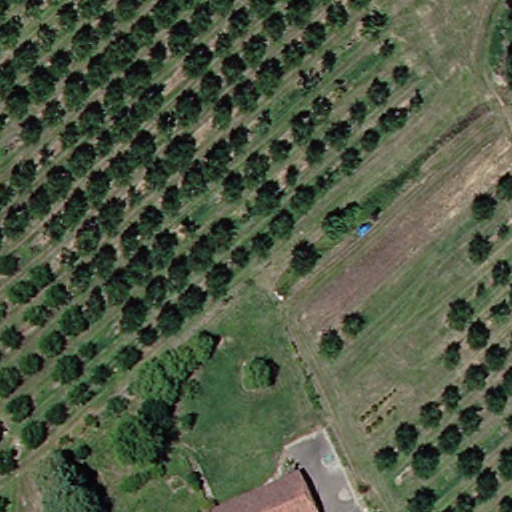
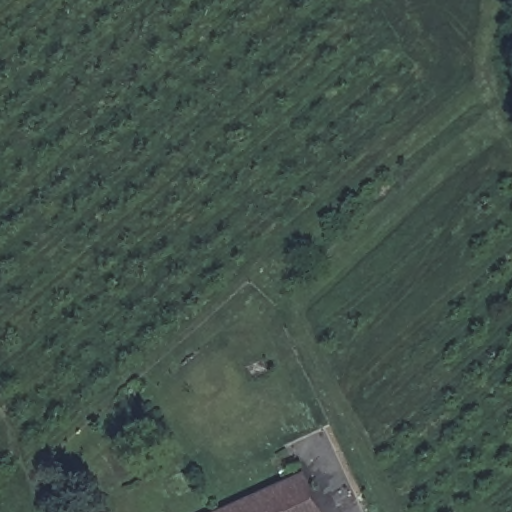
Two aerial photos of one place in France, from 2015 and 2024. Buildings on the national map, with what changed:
unchanged [(210,512),(297,473),(304,489),(280,502),(284,512),(210,512)]
unchanged [(313,512),(284,512),(280,502),(304,489),(313,512)]

